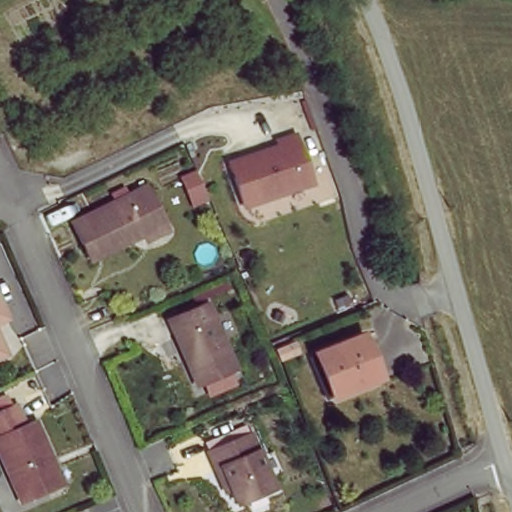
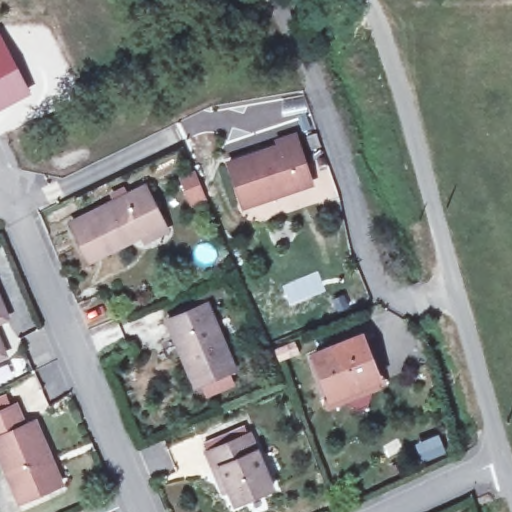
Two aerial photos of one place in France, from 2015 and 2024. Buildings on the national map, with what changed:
new [(25,90),(0,104),(0,47),(2,46),(25,90)]
unchanged [(279,150),(277,145),(295,139),(312,186),(243,209),(228,166),(279,150)]
unchanged [(165,237),(159,240),(110,263),(105,255),(88,263),(74,234),(147,200),(165,237)]
unchanged [(237,375),(197,392),(169,327),(209,311),(237,375)]
unchanged [(0,329),(0,312),(6,326),(0,329)]
unchanged [(365,337),(383,377),(334,396),(318,358),(365,337)]
unchanged [(0,364),(0,353),(4,362),(0,364)]
unchanged [(13,499),(0,468),(0,406),(10,401),(19,423),(29,420),(54,482),(13,499)]
unchanged [(236,512),(222,478),(217,480),(210,462),(207,452),(250,437),(254,446),(275,498),(241,512),(236,512)]

